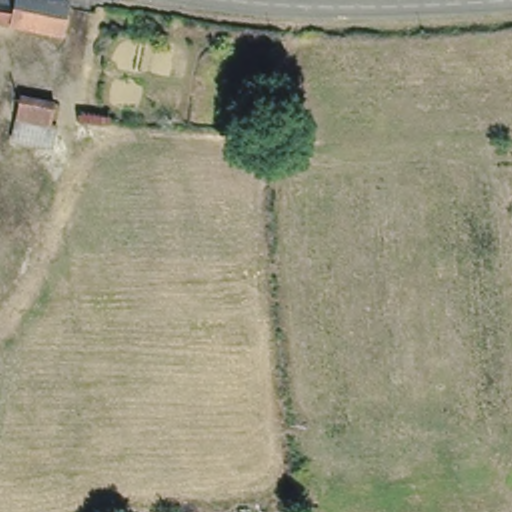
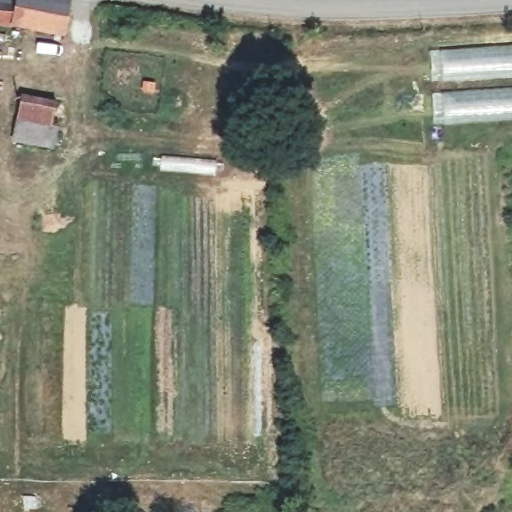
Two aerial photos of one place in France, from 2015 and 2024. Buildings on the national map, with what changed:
unchanged [(0,0),(22,0),(19,22),(0,18),(0,0)]
unchanged [(19,22),(22,0),(68,0),(72,1),(65,30),(19,22)]
new [(442,81),(440,51),(512,46),(512,76),(442,81)]
new [(512,89),(512,119),(444,124),(442,94),(512,89)]
unchanged [(47,119),(62,122),(59,150),(12,144),(18,95),(50,99),(47,119)]

